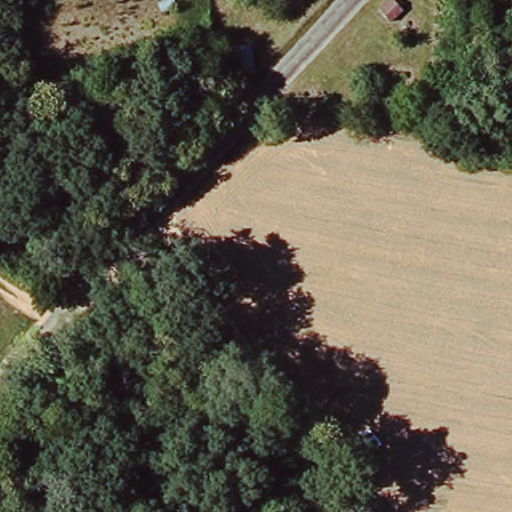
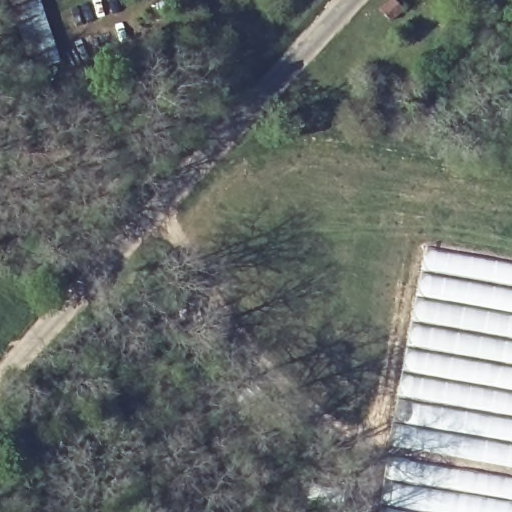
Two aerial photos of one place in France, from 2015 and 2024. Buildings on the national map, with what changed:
new [(35,72),(10,0),(40,0),(61,63),(35,72)]
unchanged [(219,74),(217,46),(255,42),(257,71),(219,74)]
new [(399,377),(410,314),(425,246),(512,262),(512,512),(380,512),(399,377)]
demolished [(383,469),(512,486),(512,512),(379,512),(383,469)]

